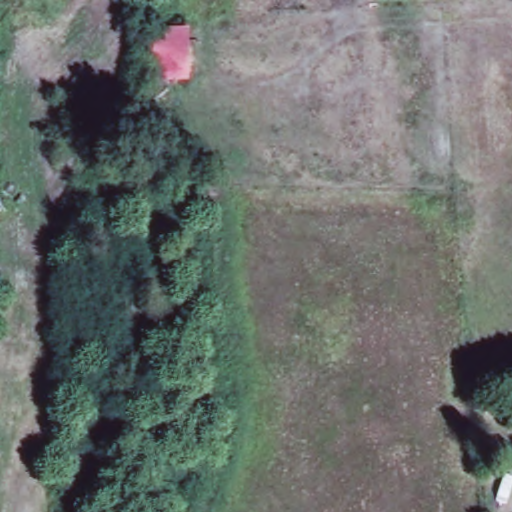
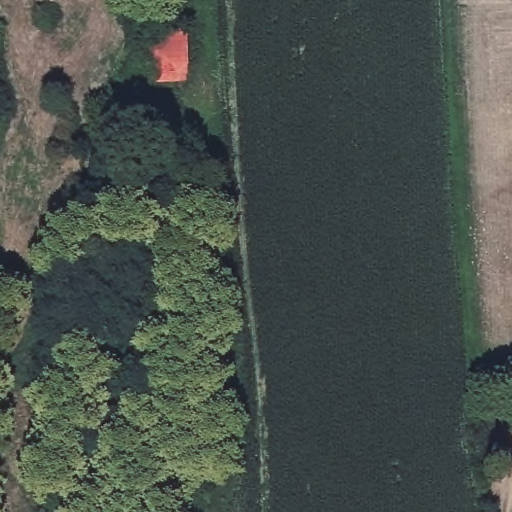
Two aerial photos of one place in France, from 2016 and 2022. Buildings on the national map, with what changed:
unchanged [(190,64),(192,94),(147,97),(144,39),(189,36),(190,64)]

